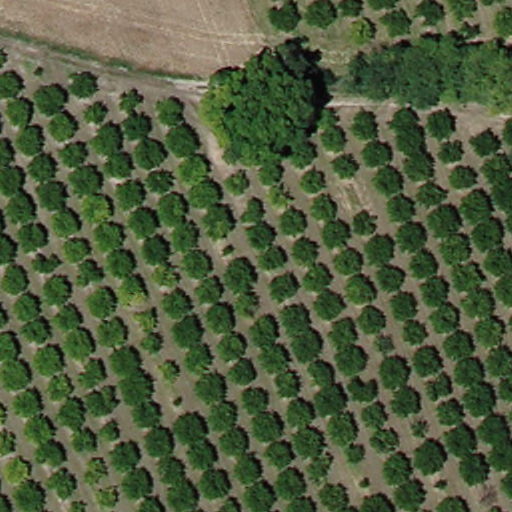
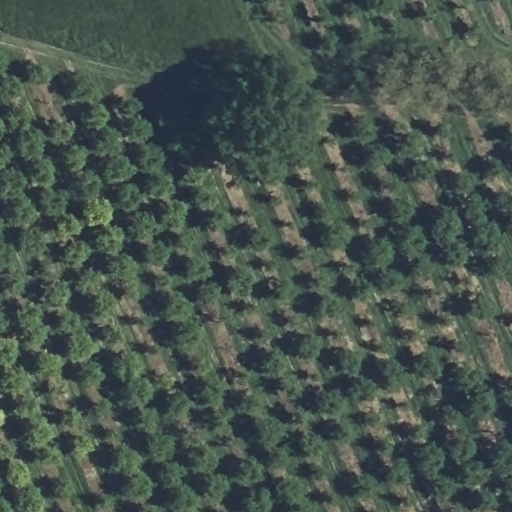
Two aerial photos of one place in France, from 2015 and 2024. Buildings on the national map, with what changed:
[]

